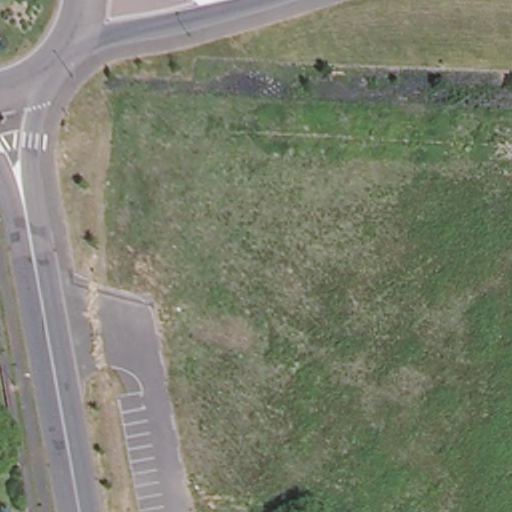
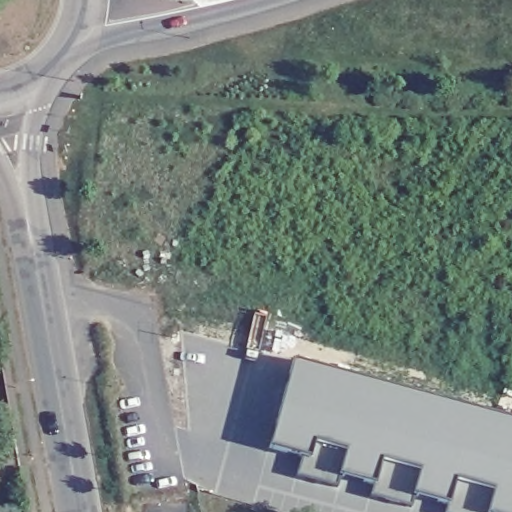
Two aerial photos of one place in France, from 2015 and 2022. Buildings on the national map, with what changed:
new [(414,496),(411,506),(371,495),(374,484),(341,475),(338,487),(299,477),(304,457),(269,448),(293,360),(512,420),(512,512),(447,512),(449,505),(414,496)]

